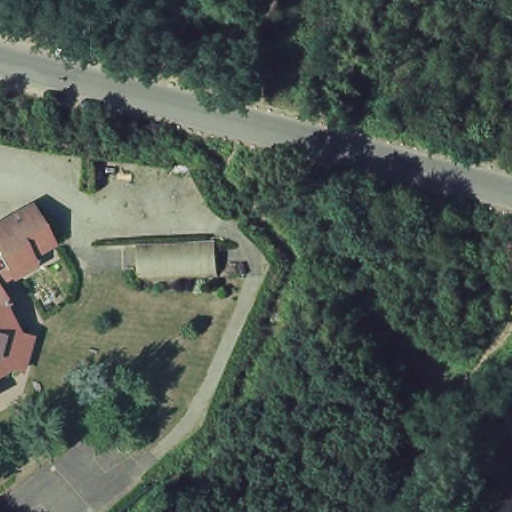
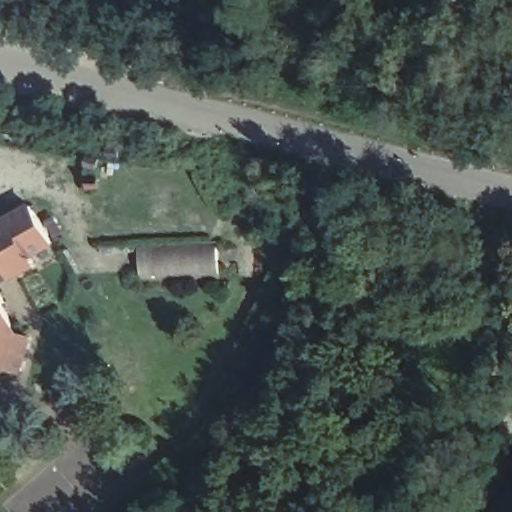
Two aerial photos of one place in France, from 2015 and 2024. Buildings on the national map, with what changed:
unchanged [(26,207),(48,246),(29,257),(33,266),(17,275),(4,253),(0,254),(0,222),(26,207)]
unchanged [(217,276),(139,280),(137,259),(95,260),(95,241),(215,237),(217,276)]
unchanged [(6,337),(24,342),(12,374),(2,371),(0,372),(0,326),(6,337)]

